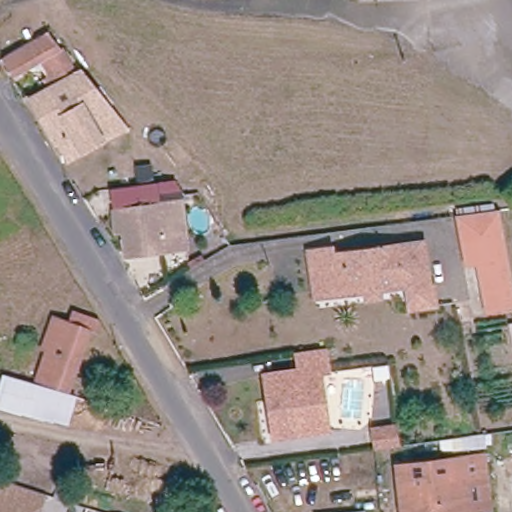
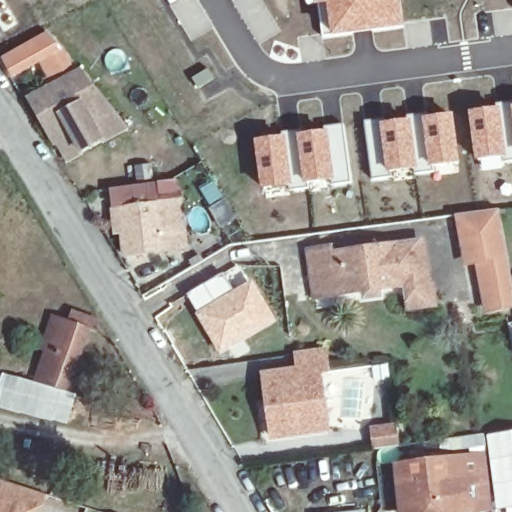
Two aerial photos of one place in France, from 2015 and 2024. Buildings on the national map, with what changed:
new [(406,29),(334,39),(324,38),(321,7),(317,8),(317,4),(308,5),(307,0),(401,0),(406,29)]
demolished [(372,6),(358,6),(358,0),(371,0),(372,6)]
unchanged [(51,45),(74,76),(49,90),(37,70),(11,84),(3,71),(51,45)]
unchanged [(121,135),(70,164),(60,145),(99,122),(73,80),(76,77),(121,135)]
unchanged [(73,80),(99,122),(60,145),(56,147),(29,106),(73,80)]
new [(497,108),(497,105),(512,103),(512,161),(505,162),(505,157),(476,162),(470,112),(497,108)]
new [(385,119),(385,122),(409,121),(407,116),(425,115),(425,118),(455,115),(461,165),(434,169),(434,172),(416,176),(416,171),(390,175),(391,177),(372,180),(365,121),(385,119)]
new [(351,184),(333,186),(333,182),(326,182),(325,175),(332,174),(326,131),(325,128),(344,126),(351,184)]
new [(257,140),(286,134),(326,131),(332,174),(325,175),(326,182),(263,191),(257,140)]
unchanged [(120,207),(119,197),(167,192),(176,204),(186,203),(186,209),(183,209),(120,214),(120,207)]
unchanged [(183,209),(186,257),(124,262),(120,214),(183,209)]
unchanged [(500,214),(509,260),(479,267),(471,268),(462,220),(500,214)]
unchanged [(334,251),(336,256),(424,241),(433,282),(437,282),(441,300),(413,306),(408,283),(340,294),(338,288),(321,291),(316,252),(334,251)]
unchanged [(509,260),(512,276),(512,307),(488,313),(479,267),(509,260)]
new [(220,356),(196,315),(199,312),(189,295),(223,275),(234,292),(253,280),(278,321),(220,356)]
unchanged [(70,325),(75,312),(101,323),(96,336),(89,333),(68,391),(39,380),(49,350),(43,347),(53,319),(70,325)]
unchanged [(327,378),(322,380),(328,436),(272,441),(266,381),(286,378),(284,365),(303,362),(327,359),(327,378)]
unchanged [(68,426),(0,409),(0,383),(2,376),(76,396),(68,426)]
unchanged [(396,428),(399,448),(374,452),(371,432),(396,428)]
new [(497,511),(487,436),(512,432),(512,509),(497,511)]
unchanged [(491,512),(486,512),(463,512),(460,483),(468,482),(465,462),(484,459),(491,512)]
unchanged [(465,462),(468,482),(460,483),(463,512),(402,512),(397,470),(465,462)]
unchanged [(41,493),(35,512),(0,512),(0,480),(15,485),(41,493)]

